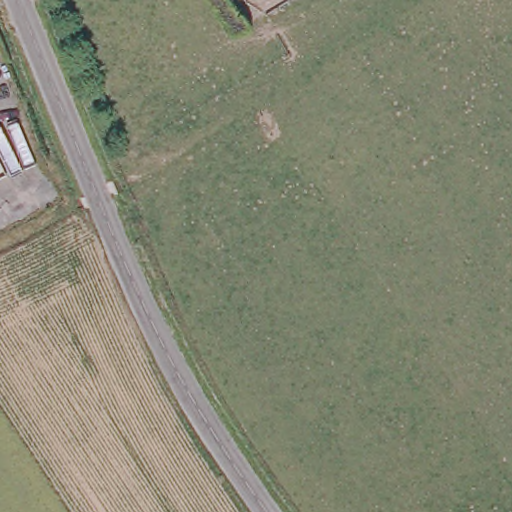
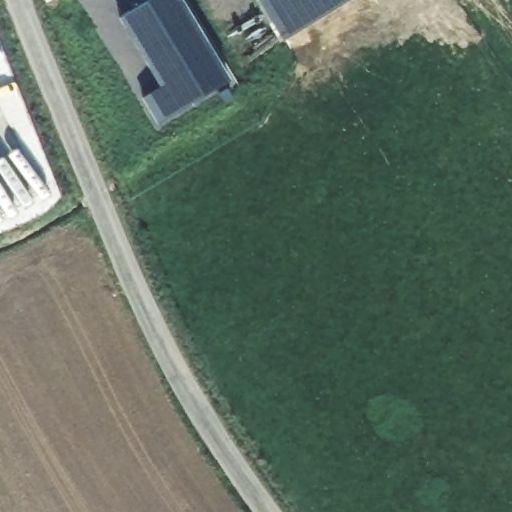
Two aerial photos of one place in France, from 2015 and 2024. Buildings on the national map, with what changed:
new [(149,0),(183,0),(231,80),(158,124),(142,99),(159,89),(118,19),(149,0)]
new [(258,0),(351,0),(283,41),(258,0)]

